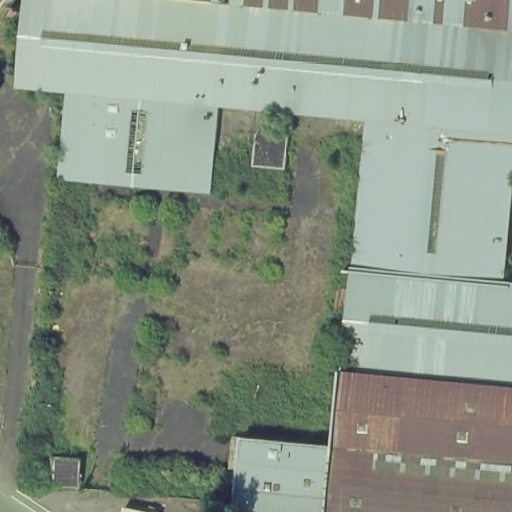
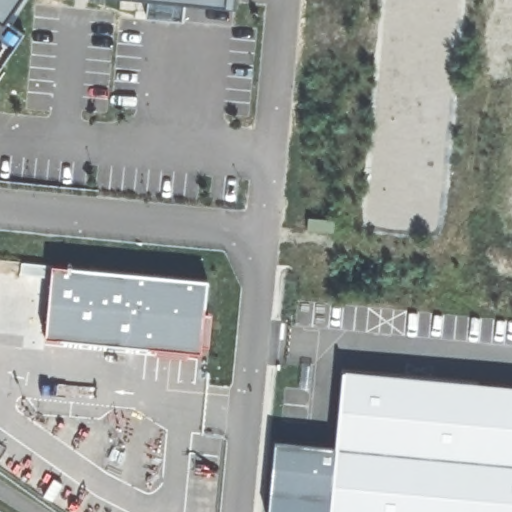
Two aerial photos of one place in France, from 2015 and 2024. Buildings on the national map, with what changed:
demolished [(0,22),(0,0),(15,0),(0,22)]
new [(3,22),(0,20),(0,0),(19,0),(3,22)]
demolished [(510,279),(512,280),(512,512),(236,512),(245,432),(335,443),(345,369),(368,122),(224,108),(218,193),(59,179),(71,93),(15,85),(25,0),(180,0),(232,6),(233,0),(512,0),(512,258),(510,279)]
new [(234,5),(184,0),(182,19),(146,15),(146,0),(234,0),(234,5)]
demolished [(232,6),(180,0),(233,0),(232,6)]
new [(309,218),(335,220),(333,232),(308,230),(309,218)]
new [(22,262),(52,265),(52,264),(208,279),(201,352),(45,337),(51,272),(50,272),(50,276),(21,274),(22,262)]
new [(335,444),(343,370),(512,387),(512,512),(267,512),(274,439),(335,444)]
demolished [(77,486),(53,484),(54,459),(80,459),(77,486)]

